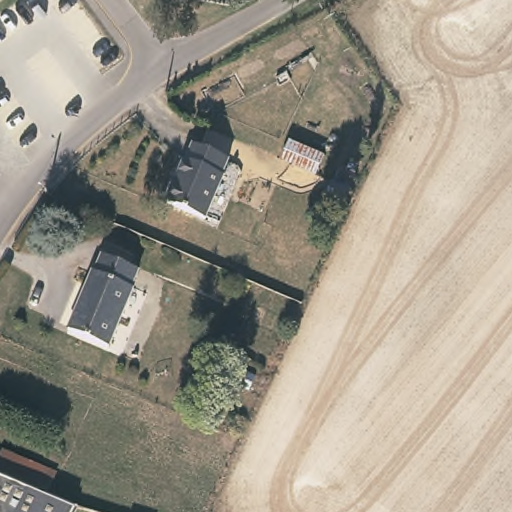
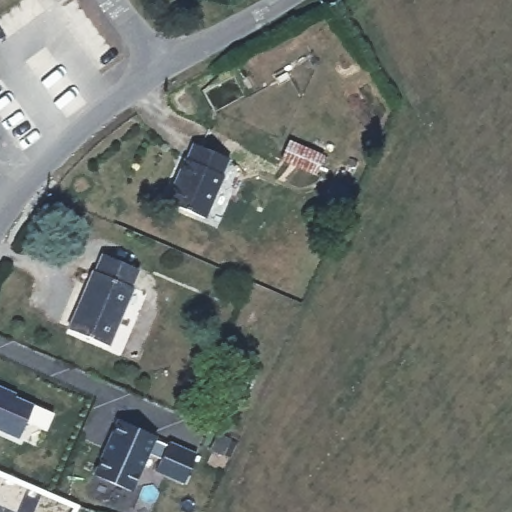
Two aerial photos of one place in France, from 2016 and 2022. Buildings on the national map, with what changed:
unchanged [(321,151),(314,170),(280,157),(288,139),(321,151)]
unchanged [(227,153),(215,181),(220,183),(208,214),(164,198),(178,167),(182,168),(193,140),(227,153)]
unchanged [(347,185),(343,196),(328,190),(333,179),(347,185)]
unchanged [(138,262),(131,280),(135,281),(124,309),(110,340),(69,325),(82,289),(94,263),(96,264),(103,249),(138,262)]
new [(16,395),(55,413),(46,432),(25,423),(18,438),(0,431),(0,386),(17,393),(16,395)]
new [(118,418),(159,436),(156,440),(168,444),(170,441),(199,454),(186,485),(156,472),(161,459),(149,454),(133,492),(93,475),(118,418)]
unchanged [(56,491),(73,499),(76,501),(71,512),(0,512),(0,466),(45,486),(56,491)]

